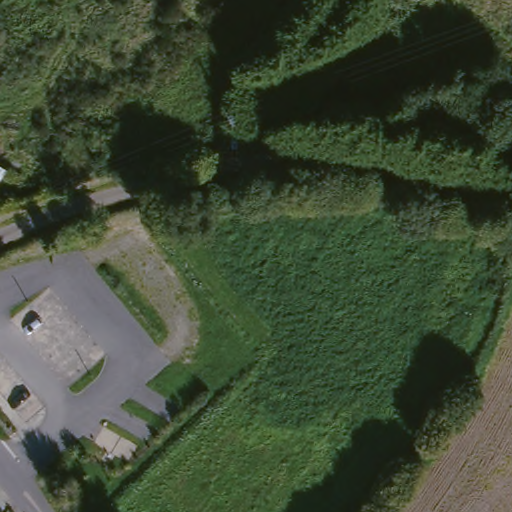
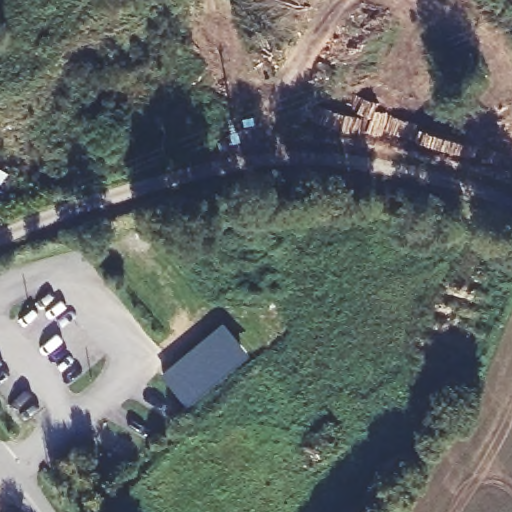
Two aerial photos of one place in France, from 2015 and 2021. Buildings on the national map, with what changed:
new [(161,376),(224,323),(250,358),(186,408),(161,376)]

